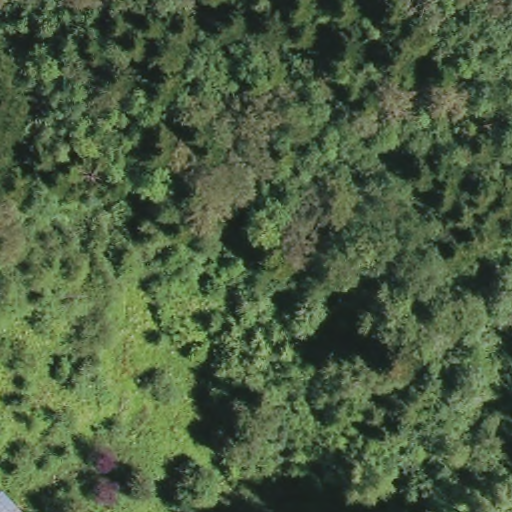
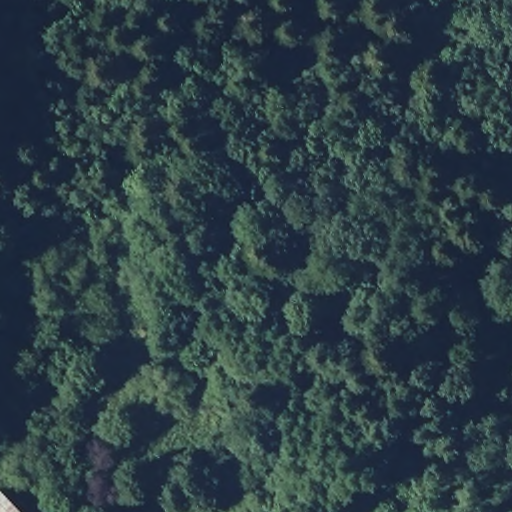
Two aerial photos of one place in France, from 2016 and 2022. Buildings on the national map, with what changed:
unchanged [(25,512),(0,512),(0,488),(1,487),(25,512)]

